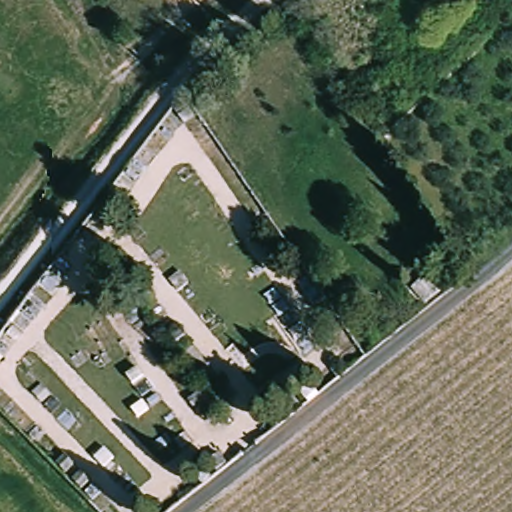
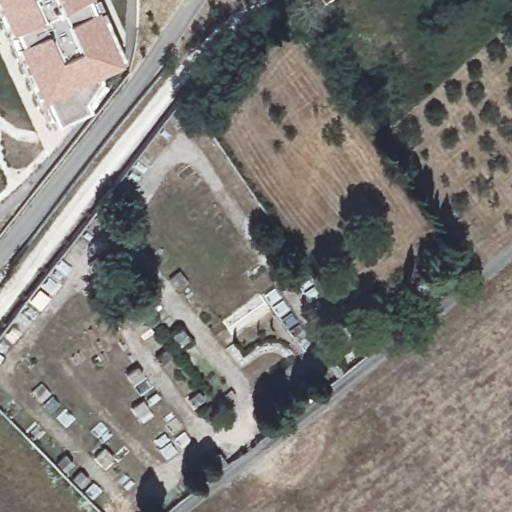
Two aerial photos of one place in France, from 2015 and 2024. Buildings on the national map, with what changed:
new [(123,57),(120,59),(121,63),(99,75),(101,79),(99,80),(104,84),(89,106),(90,110),(54,126),(53,123),(48,125),(0,24),(0,0),(97,0),(123,57)]

